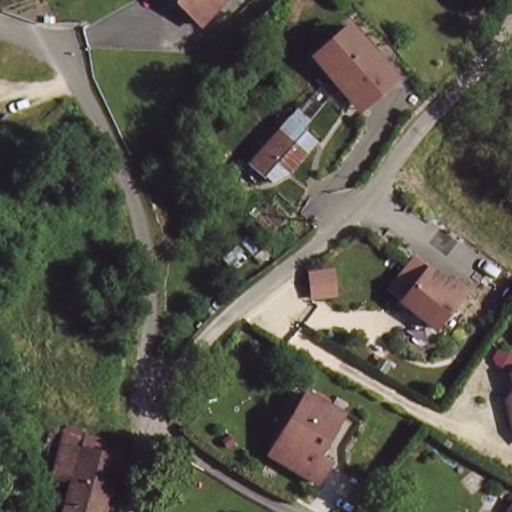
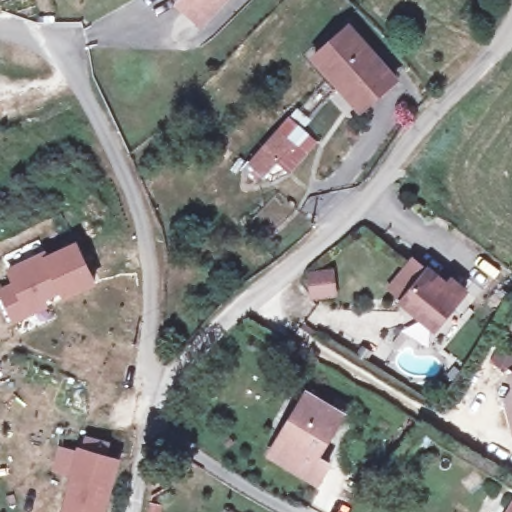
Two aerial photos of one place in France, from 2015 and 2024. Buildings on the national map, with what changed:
unchanged [(203,22),(180,1),(181,0),(224,0),(203,22)]
unchanged [(397,76),(358,112),(309,58),(348,20),(397,76)]
unchanged [(317,113),(290,148),(275,156),(262,146),(299,99),(317,113)]
new [(5,269),(44,250),(46,255),(76,241),(97,284),(62,301),(58,292),(45,299),(48,307),(13,325),(0,296),(0,287),(11,282),(5,269)]
unchanged [(440,278),(443,273),(458,284),(428,323),(395,297),(420,263),(440,278)]
unchanged [(506,372),(512,370),(512,394),(506,372)]
unchanged [(283,431),(312,387),(349,409),(321,452),(332,459),(319,479),(287,460),(270,450),(283,431)]
unchanged [(510,430),(511,429),(512,428),(512,431),(510,430)]
unchanged [(123,473),(110,512),(72,512),(81,486),(62,478),(70,455),(72,450),(77,432),(95,438),(120,446),(112,469),(123,473)]
unchanged [(510,512),(512,508),(512,512),(510,512)]

